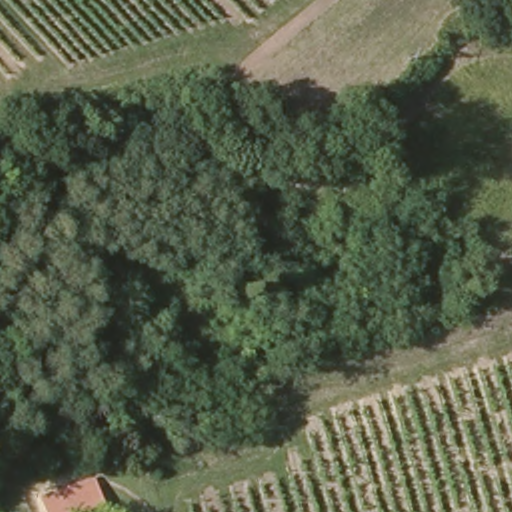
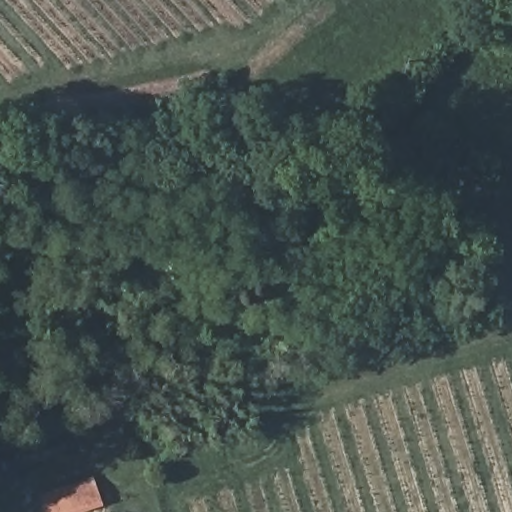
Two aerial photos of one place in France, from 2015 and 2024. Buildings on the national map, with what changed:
unchanged [(89,512),(44,512),(38,497),(94,475),(105,507),(89,512)]

